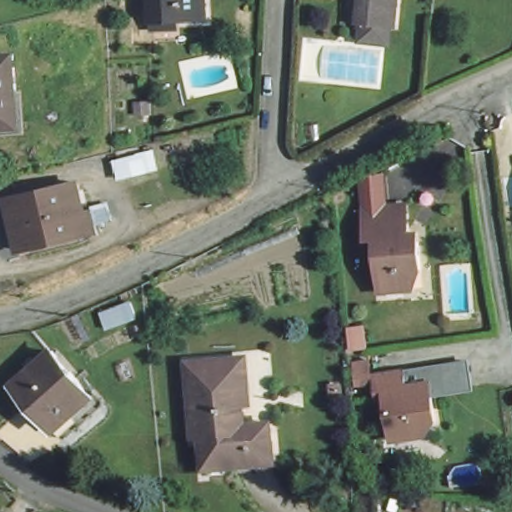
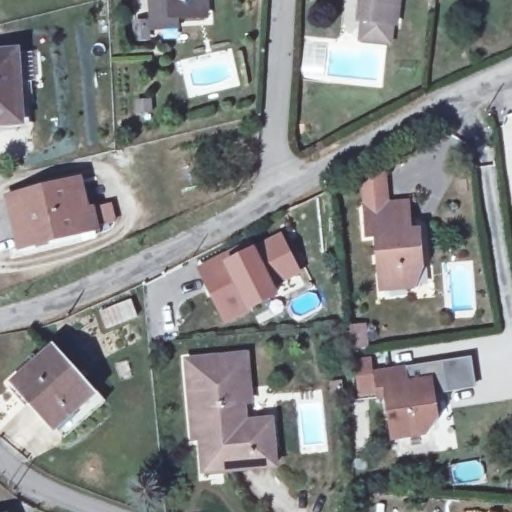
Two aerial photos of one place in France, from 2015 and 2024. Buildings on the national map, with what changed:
unchanged [(149,25),(149,17),(150,0),(205,0),(204,19),(173,17),(173,26),(149,25)]
unchanged [(388,24),(354,20),(356,0),(391,0),(388,24)]
unchanged [(16,56),(18,122),(0,123),(0,56),(16,56)]
unchanged [(85,230),(35,237),(16,239),(9,190),(82,181),(85,207),(90,207),(94,230),(88,240),(87,237),(85,230)]
unchanged [(411,272),(412,291),(382,294),(376,242),(367,242),(364,211),(405,207),(407,226),(399,228),(399,235),(415,234),(417,247),(420,272),(411,272)]
new [(243,246),(247,252),(275,237),(293,271),(266,286),(271,295),(221,322),(196,271),(243,246)]
unchanged [(57,432),(48,422),(9,380),(47,347),(87,390),(96,398),(57,432)]
unchanged [(431,411),(421,430),(413,432),(402,434),(394,435),(391,432),(387,417),(382,389),(375,388),(373,373),(402,367),(437,360),(462,354),(468,381),(427,390),(430,403),(431,411)]
unchanged [(198,456),(198,441),(188,441),(185,362),(235,361),(238,427),(265,427),(266,467),(207,470),(199,470),(198,456)]
unchanged [(9,512),(3,512),(8,510),(9,512)]

